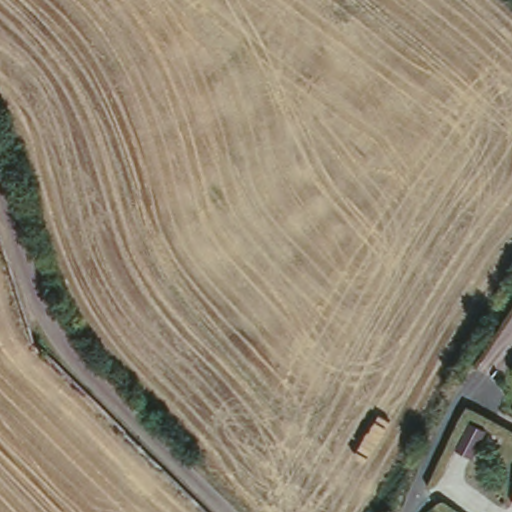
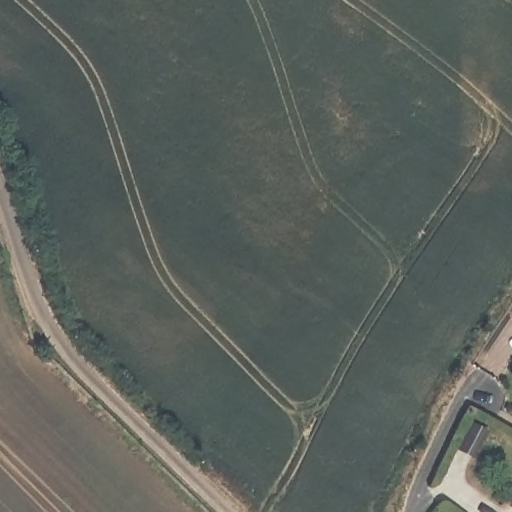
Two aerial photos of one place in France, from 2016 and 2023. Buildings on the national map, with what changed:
unchanged [(512,494),(512,506),(507,503),(512,494)]

